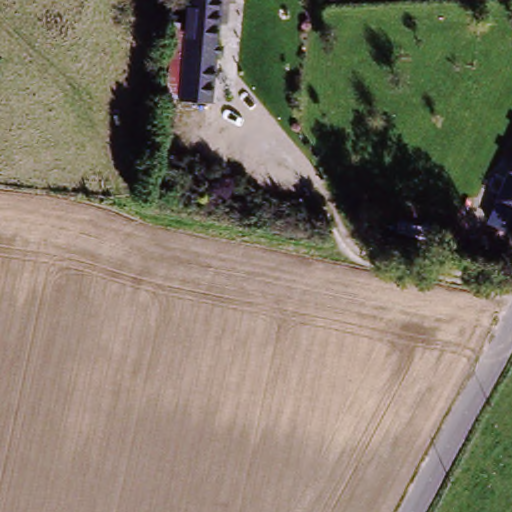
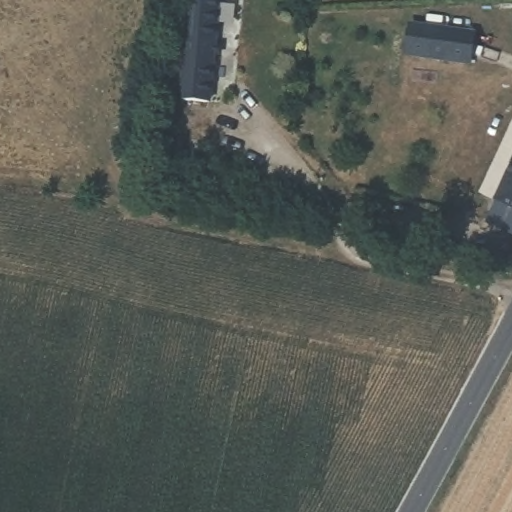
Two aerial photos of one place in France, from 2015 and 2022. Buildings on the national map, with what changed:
unchanged [(216,106),(175,100),(184,21),(197,22),(199,0),(227,0),(216,106)]
new [(414,29),(478,38),(474,67),(410,58),(414,29)]
unchanged [(512,171),(512,207),(498,202),(512,171)]

